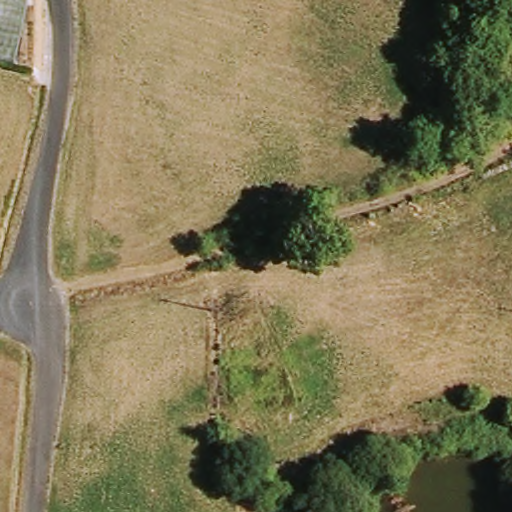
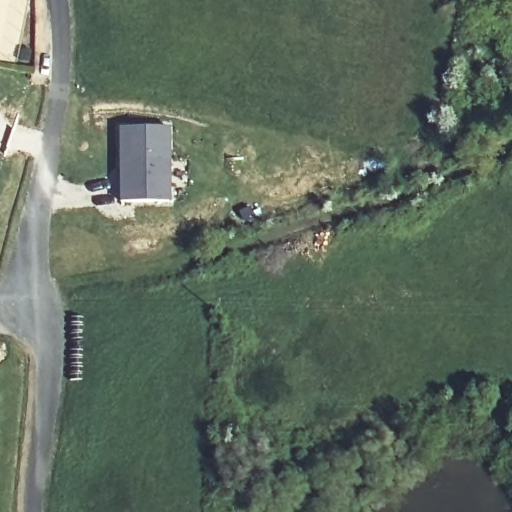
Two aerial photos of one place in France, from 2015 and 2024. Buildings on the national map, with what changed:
new [(170,204),(118,204),(118,129),(169,127),(170,204)]

